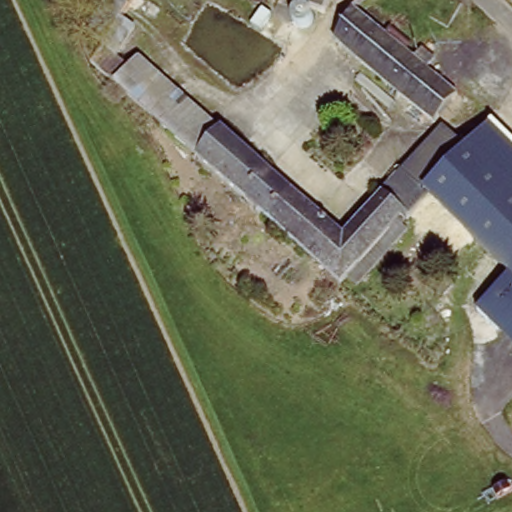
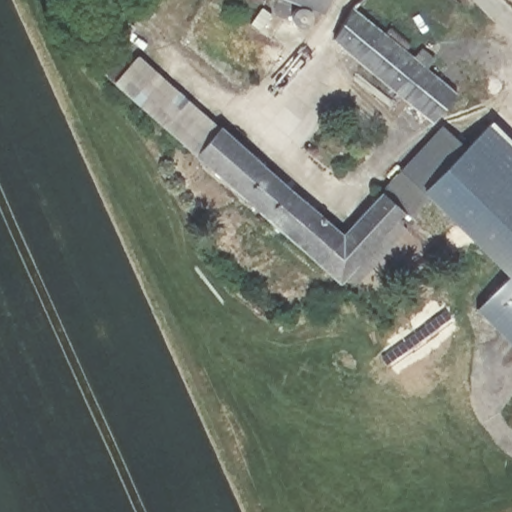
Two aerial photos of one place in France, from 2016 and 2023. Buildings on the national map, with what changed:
unchanged [(326,17),(282,0),(330,0),(326,17)]
unchanged [(426,122),(341,28),(365,6),(450,100),(426,122)]
unchanged [(344,288),(92,64),(120,14),(135,25),(117,59),(125,65),(135,54),(346,227),(382,193),(442,133),(467,148),(492,121),(512,140),(512,342),(477,310),(507,278),(420,195),(344,288)]

